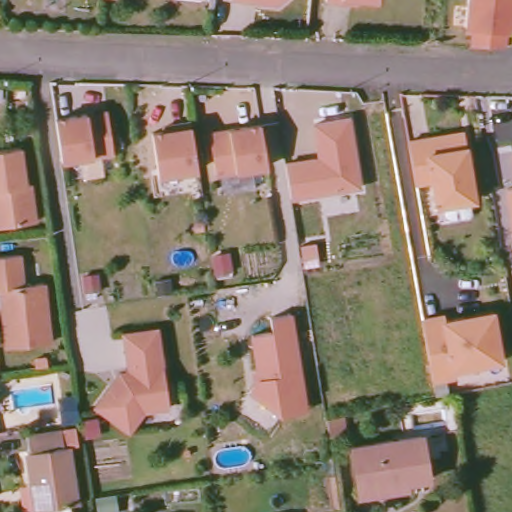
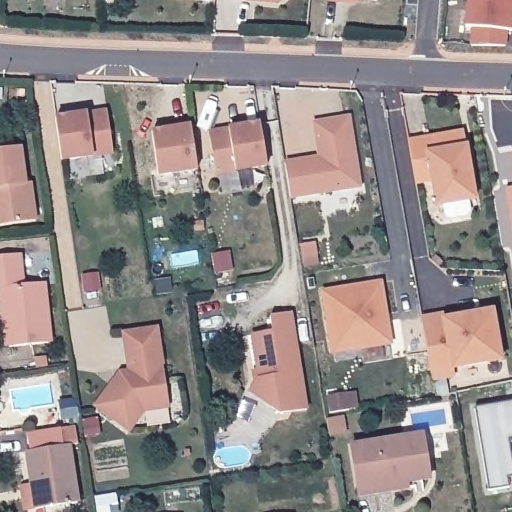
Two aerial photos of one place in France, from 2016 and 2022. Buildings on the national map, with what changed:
unchanged [(279,10),(232,5),(233,0),(291,0),(279,10)]
unchanged [(344,4),(327,1),(328,0),(344,0),(344,4)]
unchanged [(380,2),(359,0),(380,0),(380,2)]
unchanged [(473,27),(466,27),(469,0),(512,0),(512,33),(509,32),(508,46),(472,45),(473,27)]
unchanged [(90,112),(90,118),(110,115),(115,152),(63,160),(63,159),(57,117),(90,112)]
unchanged [(292,200),(287,161),(318,155),(314,123),(352,116),(364,189),(292,200)]
unchanged [(259,134),(265,169),(213,178),(207,141),(227,138),(225,132),(257,126),(259,134)]
unchanged [(196,175),(157,182),(150,134),(190,127),(196,175)]
unchanged [(467,132),(470,146),(481,199),(441,207),(436,181),(420,185),(411,142),(445,136),(467,132)]
unchanged [(23,152),(27,189),(33,189),(36,225),(0,229),(0,154),(23,152)]
unchanged [(512,189),(512,231),(505,190),(512,189)]
unchanged [(244,249),(246,265),(230,267),(227,251),(244,249)]
unchanged [(24,255),(27,286),(47,285),(52,340),(9,345),(2,290),(0,290),(0,258),(24,255)]
new [(381,283),(391,344),(333,353),(323,292),(381,283)]
unchanged [(465,316),(495,310),(496,320),(504,359),(455,369),(457,376),(435,380),(422,319),(465,311),(465,316)]
unchanged [(308,405),(295,407),(285,421),(253,398),(262,386),(255,342),(276,338),(274,323),(295,320),(308,405)]
unchanged [(172,405),(146,409),(132,429),(99,405),(115,384),(119,386),(132,369),(126,331),(160,326),(172,405)]
new [(512,459),(512,477),(507,478),(509,487),(488,491),(475,407),(512,401),(512,440),(509,440),(512,459)]
unchanged [(337,415),(341,431),(325,434),(323,418),(337,415)]
unchanged [(65,445),(70,445),(78,502),(70,502),(72,512),(44,512),(43,506),(35,507),(27,450),(30,450),(28,436),(62,431),(65,445)]
unchanged [(355,495),(354,484),(349,443),(421,431),(429,476),(425,476),(426,484),(355,495)]

